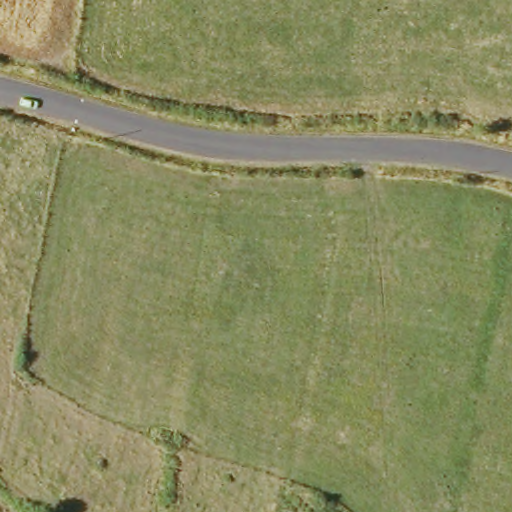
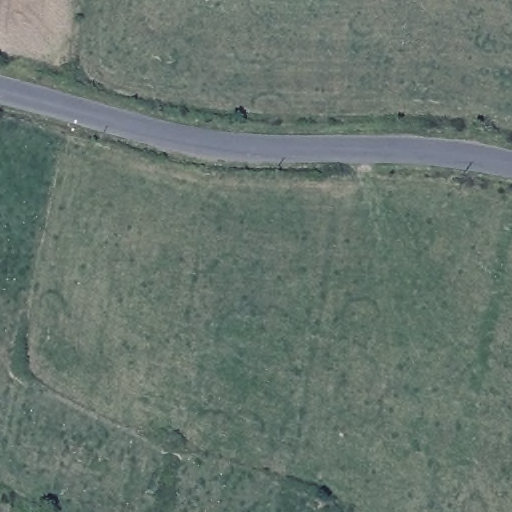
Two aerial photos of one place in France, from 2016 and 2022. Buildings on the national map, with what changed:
[]

